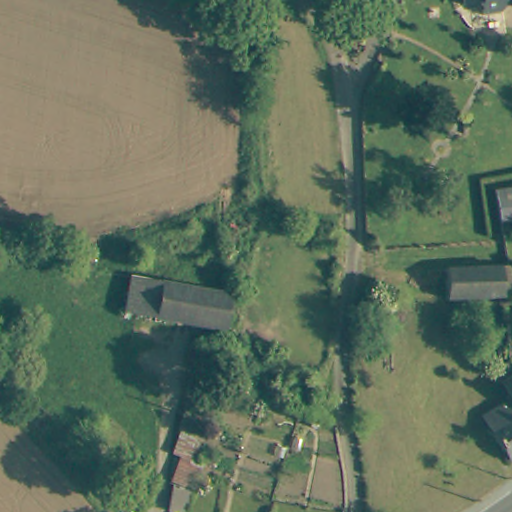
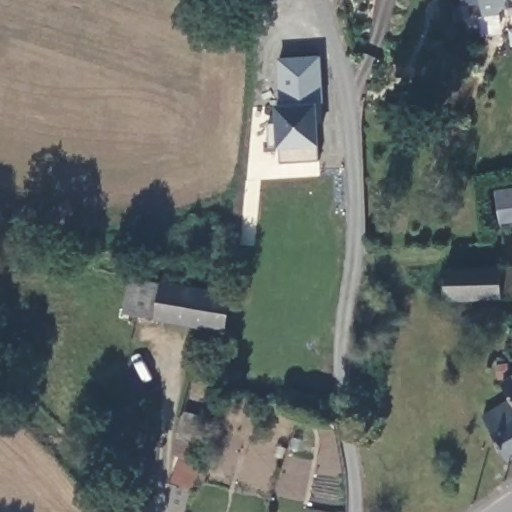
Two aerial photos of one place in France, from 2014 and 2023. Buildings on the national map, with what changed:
unchanged [(501,19),(485,21),(484,9),(465,10),(463,0),(512,0),(512,10),(504,11),(501,19)]
new [(278,147),(275,102),(281,102),(278,57),(321,55),(325,123),(320,123),(320,145),(322,160),(279,162),(278,147)]
unchanged [(496,190),(512,187),(512,221),(499,224),(496,190)]
unchanged [(499,267),(504,267),(512,267),(512,297),(503,298),(501,298),(445,301),(444,271),(499,267)]
unchanged [(163,285),(159,320),(124,316),(129,280),(163,285)]
unchanged [(163,285),(227,293),(223,327),(159,320),(163,285)]
unchanged [(257,395),(226,391),(231,365),(260,370),(257,395)]
unchanged [(510,382),(512,381),(512,401),(503,386),(510,382)]
unchanged [(324,427),(299,415),(285,410),(292,394),(331,411),(325,426),(324,427)]
unchanged [(482,420),(504,406),(512,401),(512,460),(507,463),(482,420)]
unchanged [(209,441),(199,463),(203,465),(191,489),(172,482),(180,460),(173,456),(180,430),(209,441)]

